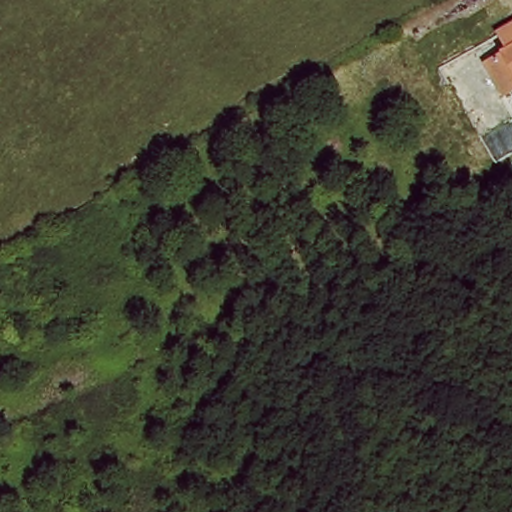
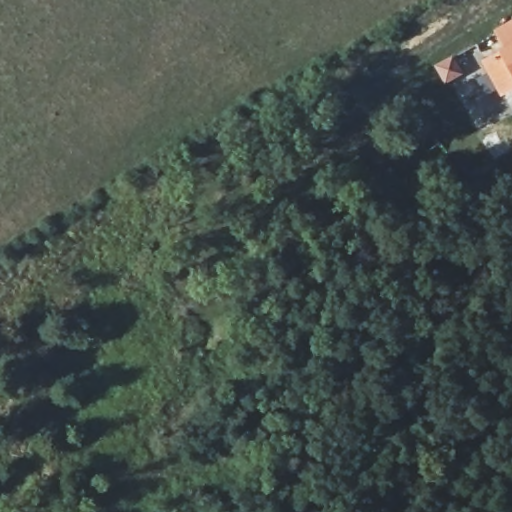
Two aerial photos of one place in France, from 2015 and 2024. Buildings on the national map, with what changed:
unchanged [(512,18),(512,79),(510,80),(490,52),(503,42),(500,26),(512,18)]

